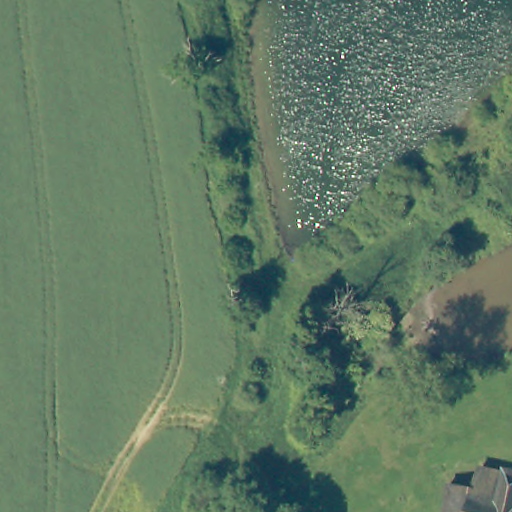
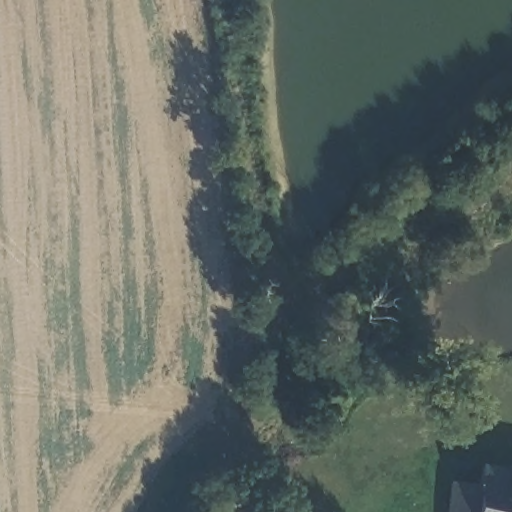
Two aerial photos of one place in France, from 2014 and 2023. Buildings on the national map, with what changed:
unchanged [(451,480),(479,487),(484,465),(510,471),(512,466),(512,512),(445,512),(450,485),(451,480)]

